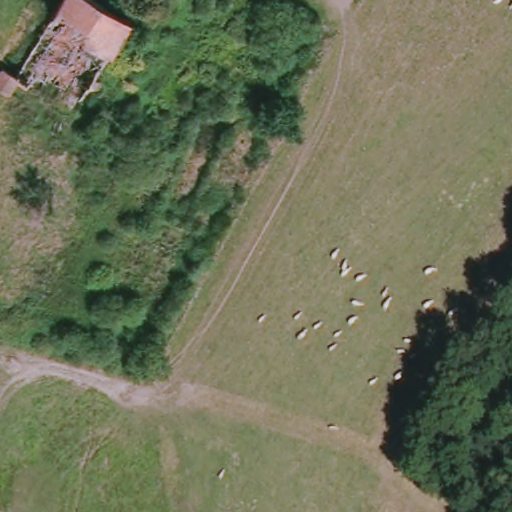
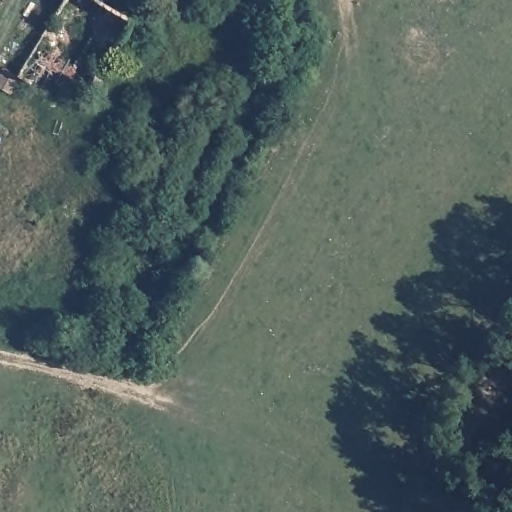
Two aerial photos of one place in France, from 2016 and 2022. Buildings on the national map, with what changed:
unchanged [(104,0),(136,18),(113,55),(88,40),(93,26),(60,10),(64,0),(104,0)]
unchanged [(4,70),(20,78),(10,95),(0,89),(0,76),(4,70)]

